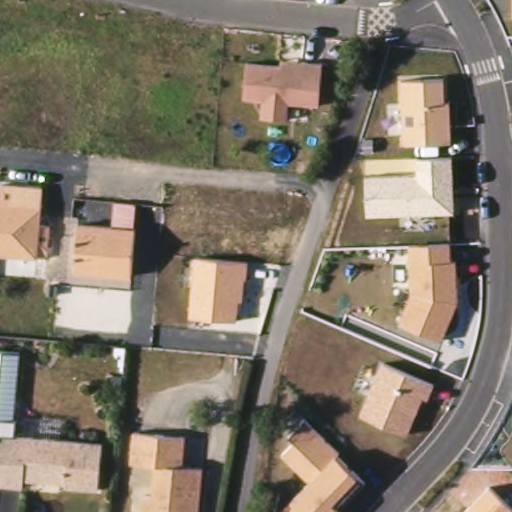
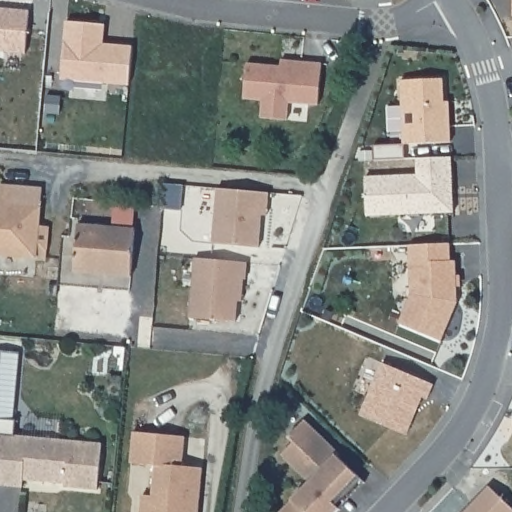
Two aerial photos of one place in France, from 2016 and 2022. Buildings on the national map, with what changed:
new [(29,10),(25,53),(0,51),(0,8),(29,10)]
new [(106,27),(105,45),(116,46),(134,48),(131,86),(63,80),(68,22),(106,27)]
unchanged [(294,97),(292,114),(266,112),(268,95),(249,93),(252,58),(286,61),(286,55),(306,56),(327,58),(324,100),(294,97)]
unchanged [(447,101),(451,101),(452,140),(403,143),(400,76),(444,74),(447,101)]
unchanged [(366,176),(418,173),(418,159),(453,158),(454,212),(369,215),(366,176)]
unchanged [(4,203),(5,190),(5,185),(47,189),(47,194),(45,213),(55,214),(51,258),(0,254),(0,203),(4,203)]
new [(268,193),(267,206),(266,216),(261,215),(258,249),(211,244),(217,189),(268,193)]
unchanged [(83,224),(140,229),(136,275),(79,271),(83,224)]
unchanged [(400,322),(412,292),(409,247),(450,244),(451,261),(457,261),(458,304),(442,340),(400,322)]
unchanged [(248,260),(246,280),(244,280),(242,302),(237,302),(237,319),(190,316),(194,257),(248,260)]
unchanged [(360,415),(382,361),(434,382),(408,434),(360,415)]
unchanged [(337,455),(366,480),(338,512),(281,512),(308,480),(281,454),(293,441),(289,438),(307,419),(340,450),(337,455)]
unchanged [(102,438),(98,484),(65,481),(65,478),(23,474),(23,481),(0,480),(0,435),(0,429),(102,438)]
unchanged [(187,466),(208,467),(204,512),(146,512),(147,494),(157,495),(160,465),(135,462),(138,431),(190,436),(187,466)]
unchanged [(512,512),(463,512),(491,484),(512,504),(512,512)]

